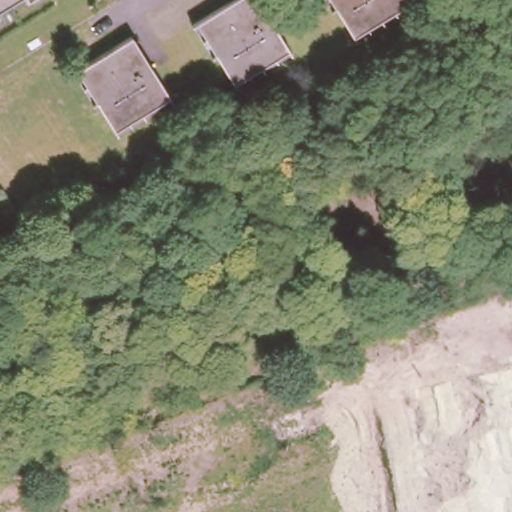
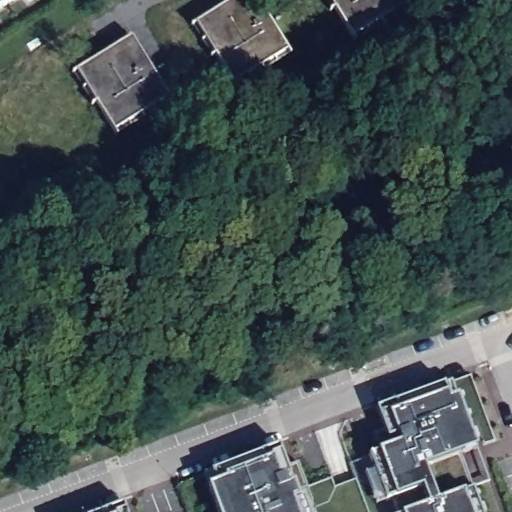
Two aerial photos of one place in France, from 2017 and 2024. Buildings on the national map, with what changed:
unchanged [(10,0),(0,6),(0,0),(10,0)]
unchanged [(210,57),(190,25),(194,22),(228,0),(255,0),(285,49),(289,54),(236,87),(233,82),(215,54),(210,57)]
unchanged [(333,10),(327,0),(410,0),(410,1),(413,6),(359,40),(356,36),(338,7),(333,10)]
unchanged [(94,99),(88,102),(67,70),(73,66),(128,32),(166,92),(169,97),(115,132),(111,126),(94,99)]
demolished [(512,311),(510,312),(485,320),(481,306),(508,298),(512,309),(512,311)]
new [(475,448),(459,455),(480,512),(380,512),(370,487),(357,482),(351,463),(379,452),(373,435),(383,432),(376,410),(450,382),(475,448)]
demolished [(503,447),(512,484),(510,485),(512,495),(512,508),(494,512),(460,512),(456,497),(468,493),(461,462),(458,462),(457,458),(465,457),(450,392),(487,384),(501,447),(503,447)]
new [(280,447),(290,467),(299,463),(317,512),(220,512),(205,474),(280,447)]
new [(125,503),(129,512),(102,512),(125,503)]

